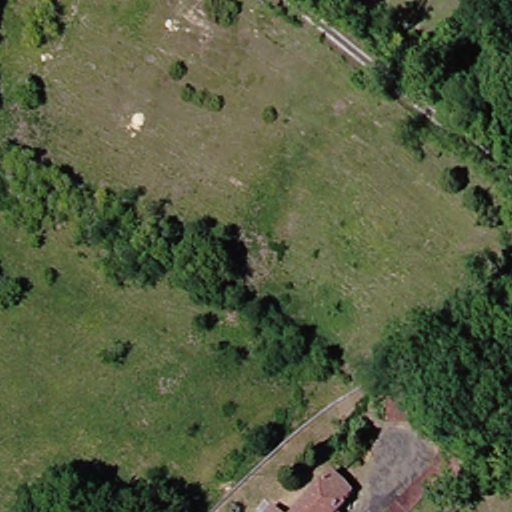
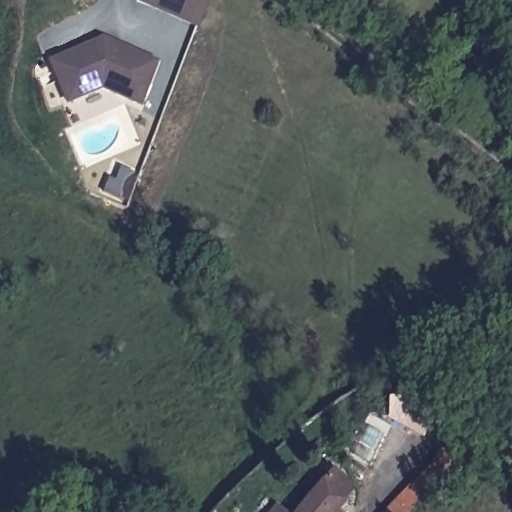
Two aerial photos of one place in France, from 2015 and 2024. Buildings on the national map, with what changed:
new [(136,0),(211,0),(200,28),(135,5),(136,0)]
new [(66,107),(46,65),(100,40),(160,61),(142,107),(101,92),(66,107)]
unchanged [(400,421),(368,438),(356,416),(387,399),(400,421)]
unchanged [(444,463),(460,477),(427,512),(420,512),(410,501),(444,463)]
unchanged [(334,466),(360,483),(352,494),(340,512),(303,512),(326,478),(334,466)]
unchanged [(420,512),(398,512),(410,501),(420,512)]
unchanged [(280,512),(277,512),(278,510),(280,512)]

